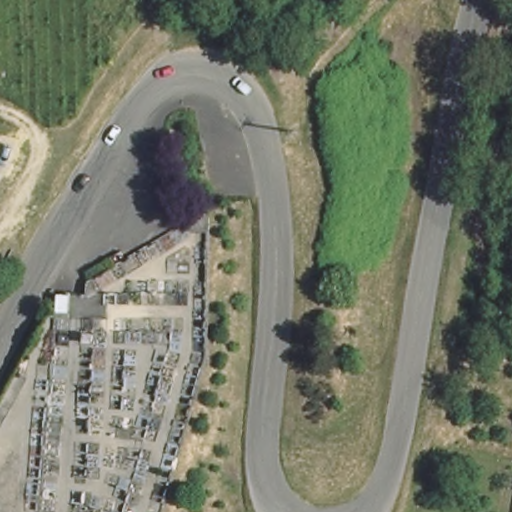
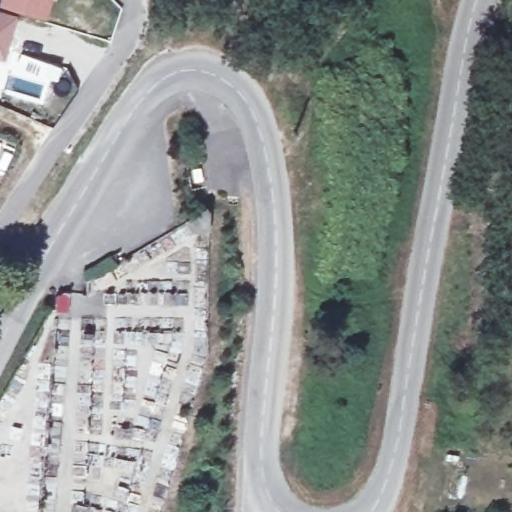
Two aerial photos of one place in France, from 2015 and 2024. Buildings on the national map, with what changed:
new [(0,9),(3,0),(48,0),(42,22),(0,9)]
new [(11,24),(0,61),(0,20),(11,24)]

